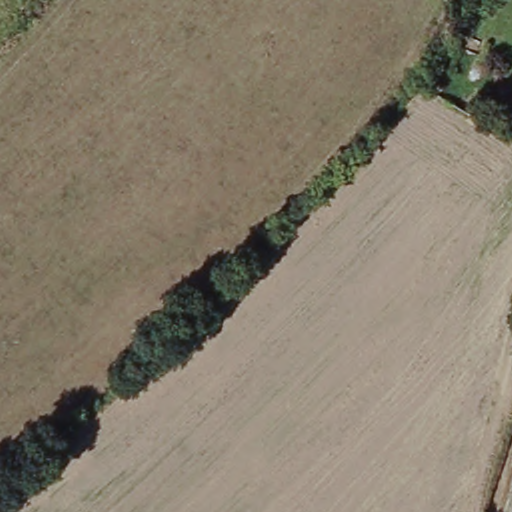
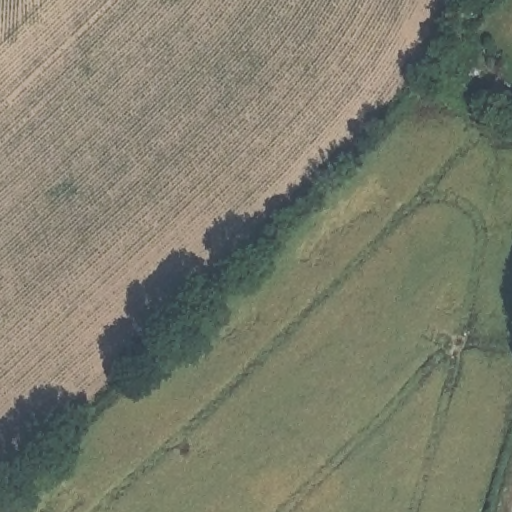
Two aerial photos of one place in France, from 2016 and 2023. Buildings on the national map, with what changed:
unchanged [(488,18),(500,25),(490,45),(478,38),(488,18)]
unchanged [(442,89),(451,71),(479,86),(468,103),(442,89)]

